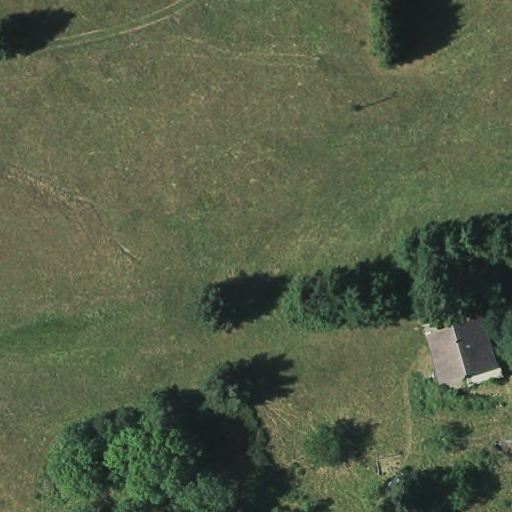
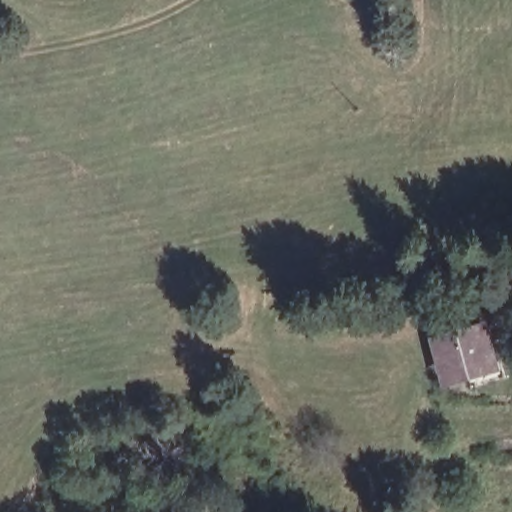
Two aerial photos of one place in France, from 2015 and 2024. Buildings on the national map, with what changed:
unchanged [(442,374),(432,338),(474,325),(483,357),(484,360),(460,368),(442,374)]

